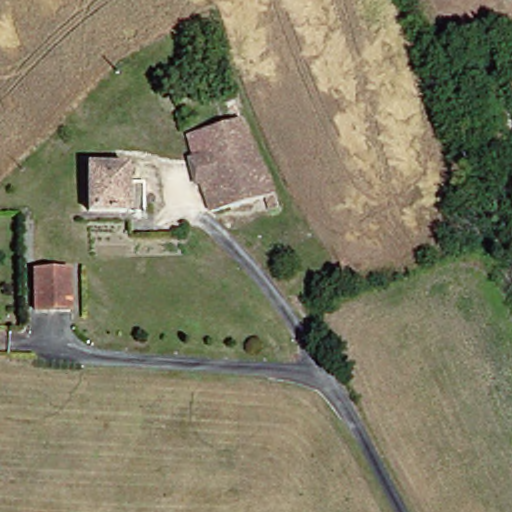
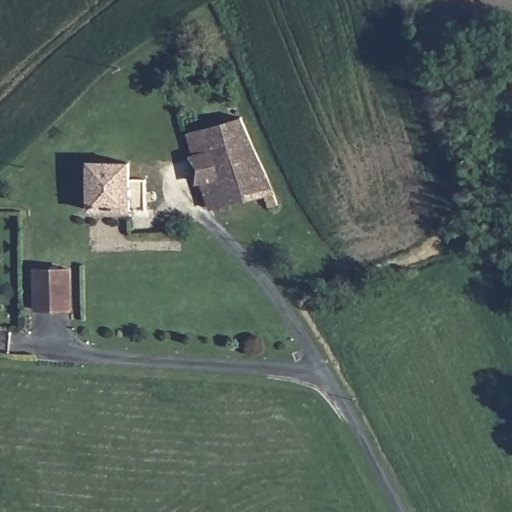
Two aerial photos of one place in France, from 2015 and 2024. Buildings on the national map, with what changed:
unchanged [(510,105),(502,102),(500,95),(500,89),(504,83),(512,82),(512,104),(510,105)]
unchanged [(239,121),(271,208),(258,213),(253,198),(212,210),(204,182),(194,156),(187,135),(239,121)]
unchanged [(85,211),(85,164),(124,166),(124,213),(85,211)]
unchanged [(67,313),(30,314),(29,272),(67,271),(67,313)]

